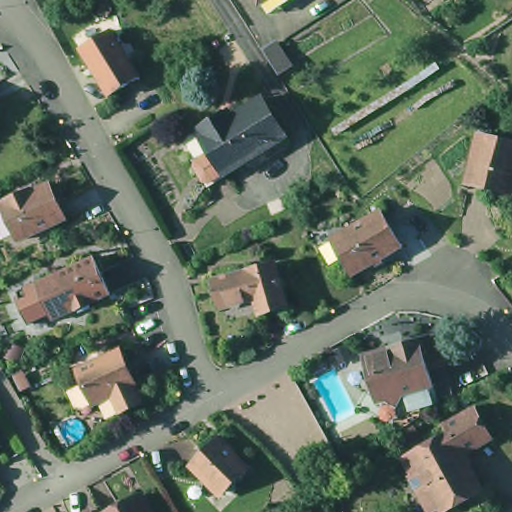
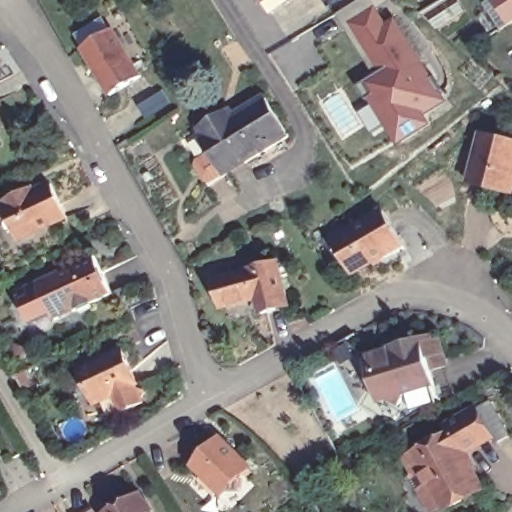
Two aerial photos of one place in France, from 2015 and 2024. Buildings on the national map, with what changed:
unchanged [(270,14),(262,2),(260,4),(258,0),(291,0),(270,14)]
new [(512,22),(510,24),(494,0),(512,0),(512,22)]
new [(392,128),(379,137),(365,114),(378,106),(375,97),(381,95),(372,84),(385,77),(350,24),(377,6),(390,25),(398,19),(453,102),(433,116),(439,126),(405,147),(392,128)]
unchanged [(140,72),(110,91),(82,44),(112,25),(140,72)]
demolished [(282,74),(270,52),(268,50),(282,42),(283,44),(296,66),(282,74)]
unchanged [(191,140),(210,129),(230,117),(240,111),(242,117),(273,98),(297,136),(253,162),(235,174),(217,184),(191,140)]
unchanged [(512,136),(512,184),(511,189),(467,178),(476,144),(480,129),(512,136)]
unchanged [(8,206),(11,205),(10,202),(37,190),(38,192),(55,185),(71,220),(25,241),(8,206)]
unchanged [(352,275),(332,240),(382,211),(402,246),(352,275)]
unchanged [(53,321),(37,283),(94,257),(111,295),(91,303),(93,307),(79,314),(77,310),(53,321)]
unchanged [(281,259),(293,302),(267,310),(262,294),(226,304),(218,277),(281,259)]
unchanged [(425,337),(427,342),(433,341),(440,362),(425,366),(430,385),(402,394),(393,407),(381,401),(372,402),(370,395),(361,389),(370,376),(363,372),(358,357),(388,348),(414,341),(417,340),(425,337)]
unchanged [(143,393),(140,401),(142,404),(121,413),(113,396),(95,404),(79,369),(121,351),(137,386),(135,387),(137,391),(143,393)]
unchanged [(440,512),(420,477),(414,480),(405,462),(450,437),(445,430),(475,413),(490,441),(461,457),(480,490),(482,494),(463,505),(450,512),(440,512)]
unchanged [(213,438),(245,469),(233,482),(233,492),(215,492),(187,466),(213,438)]
unchanged [(117,512),(145,496),(155,512),(117,512)]
unchanged [(98,512),(95,512),(97,511),(98,512)]

